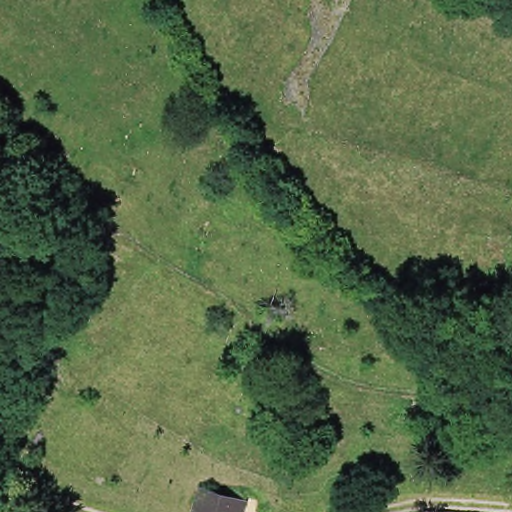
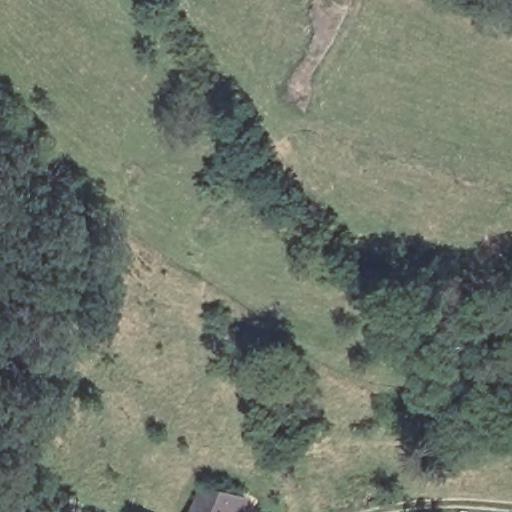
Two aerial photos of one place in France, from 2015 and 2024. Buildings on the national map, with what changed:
unchanged [(200,478),(241,487),(235,512),(193,512),(192,512),(200,478)]
unchanged [(464,510),(467,506),(474,511),(475,512),(463,512),(464,510)]

